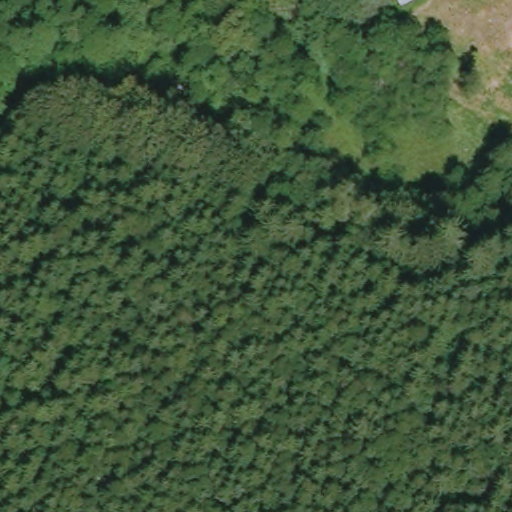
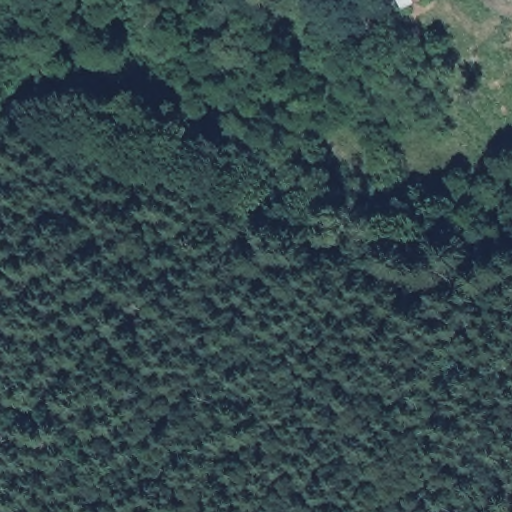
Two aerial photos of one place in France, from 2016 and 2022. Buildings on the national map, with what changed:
unchanged [(389,0),(417,0),(396,11),(389,0)]

